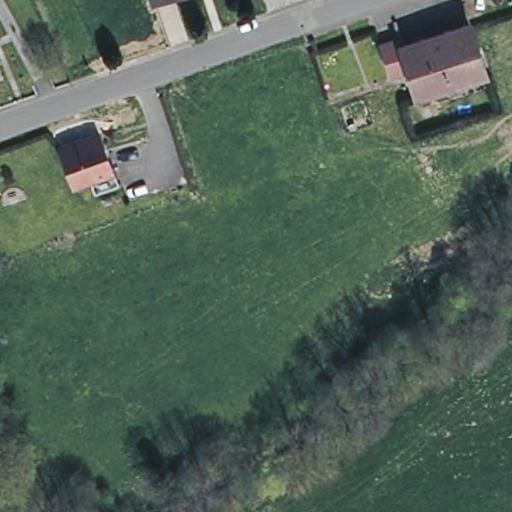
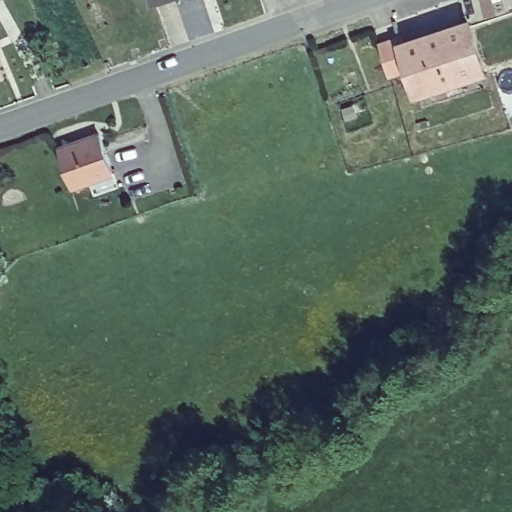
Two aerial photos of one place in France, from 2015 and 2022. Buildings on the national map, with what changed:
unchanged [(488,66),(420,88),(412,62),(393,68),(384,40),(403,33),(405,39),(473,17),(488,66)]
unchanged [(89,174),(70,181),(57,143),(98,129),(110,167),(115,181),(93,189),(89,174)]

